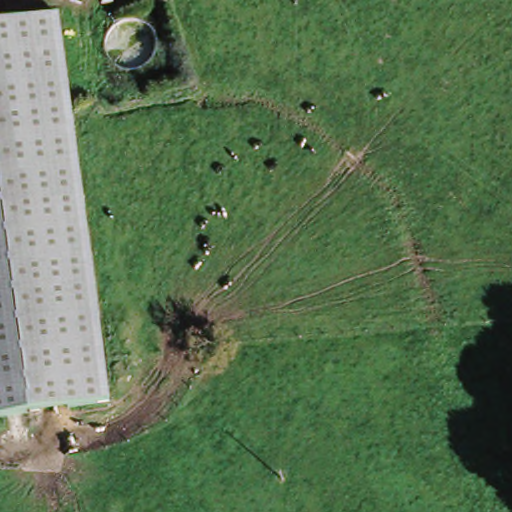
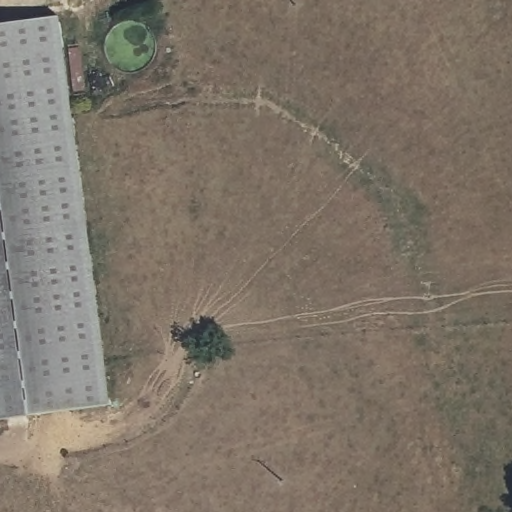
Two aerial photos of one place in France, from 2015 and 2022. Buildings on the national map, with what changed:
unchanged [(108,353),(0,369),(0,15),(54,7),(108,353)]
unchanged [(0,369),(108,353),(115,401),(0,417),(0,369)]

